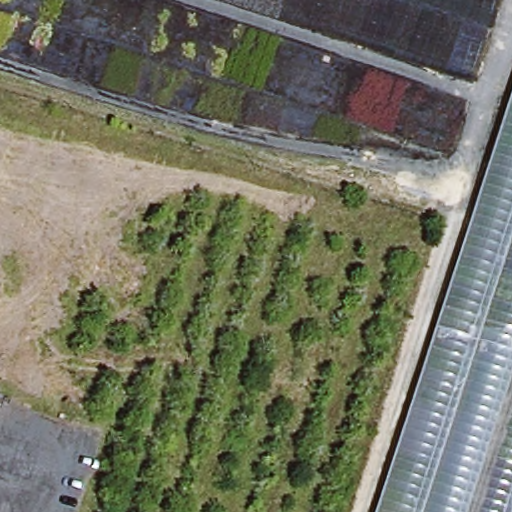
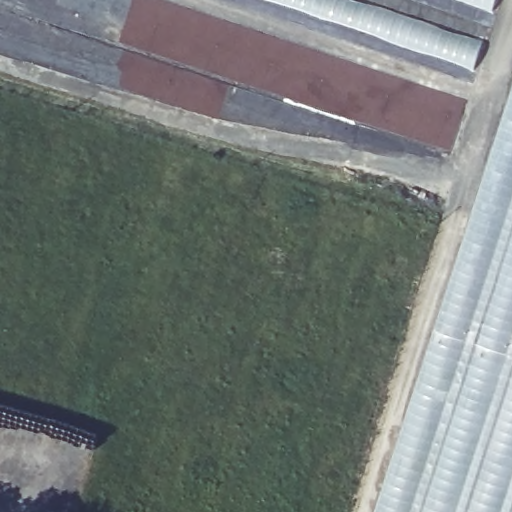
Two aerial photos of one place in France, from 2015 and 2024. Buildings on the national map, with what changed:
unchanged [(382,512),(512,91),(512,512),(382,512)]

